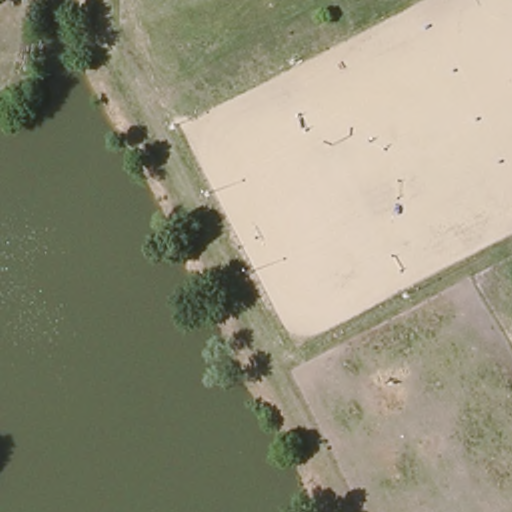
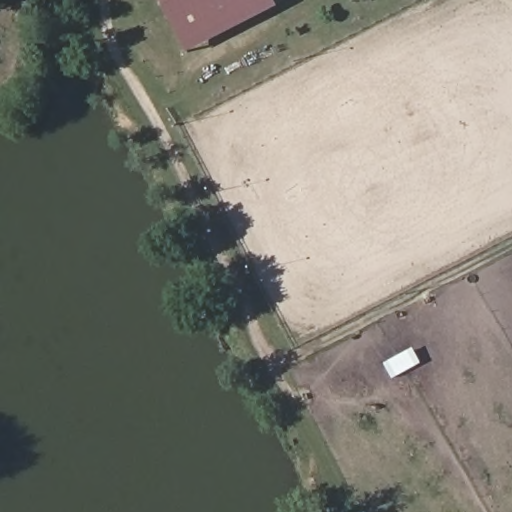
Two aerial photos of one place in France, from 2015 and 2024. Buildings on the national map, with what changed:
new [(185,53),(158,0),(273,0),(276,6),(185,53)]

